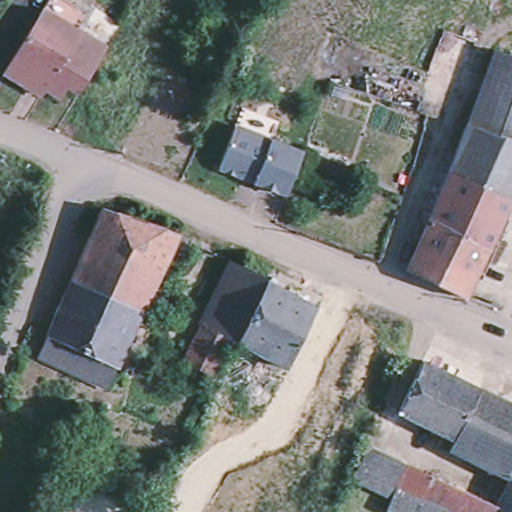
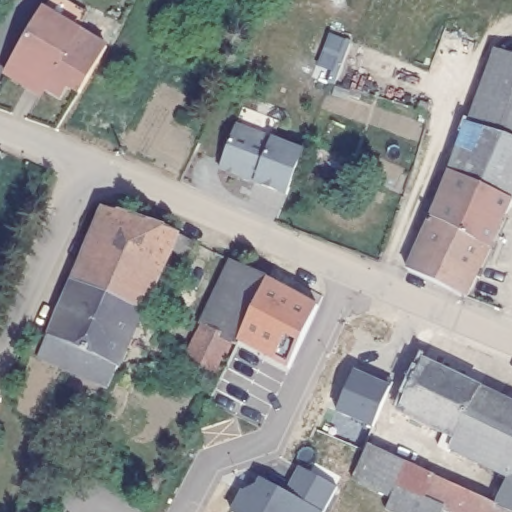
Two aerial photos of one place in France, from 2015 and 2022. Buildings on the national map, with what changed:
unchanged [(5,71),(46,8),(52,0),(72,0),(87,9),(77,26),(88,32),(105,43),(93,62),(78,88),(66,81),(59,93),(53,89),(44,84),(40,91),(27,83),(5,71)]
unchanged [(512,82),(488,73),(493,61),(496,51),(512,56),(512,82)]
unchanged [(512,139),(468,125),(476,107),(482,91),(488,73),(512,82),(512,139)]
unchanged [(243,112),(281,127),(273,146),(304,159),(288,200),(255,187),(256,182),(245,178),(243,182),(219,173),(236,131),(243,112)]
unchanged [(441,194),(451,172),(456,158),(466,129),(468,125),(512,139),(512,203),(490,248),(432,217),(439,201),(441,194)]
unchanged [(183,237),(188,240),(196,244),(188,260),(176,254),(143,327),(73,295),(79,280),(109,213),(136,221),(183,237)]
unchanged [(434,282),(408,270),(431,221),(432,217),(490,248),(483,263),(467,297),(434,282)]
unchanged [(202,326),(213,305),(234,262),(251,271),(267,279),(296,295),(317,306),(288,365),(253,347),(238,338),(236,343),(232,341),(213,378),(183,362),(202,326)]
unchanged [(143,327),(123,371),(53,339),(54,338),(73,295),(143,327)]
unchanged [(123,371),(113,392),(44,361),(53,339),(123,371)]
unchanged [(452,448),(450,451),(439,446),(441,443),(446,434),(399,411),(424,359),(481,387),(512,403),(512,478),(510,478),(452,448)]
new [(389,384),(371,428),(334,410),(354,368),(389,384)]
unchanged [(443,512),(396,512),(387,508),(393,497),(354,476),(372,444),(407,461),(412,464),(421,469),(436,476),(483,497),(498,503),(510,478),(512,478),(512,512),(452,512),(445,509),(443,512)]
new [(323,512),(230,512),(229,512),(240,489),(255,483),(260,477),(286,491),(298,466),(337,487),(323,512)]

